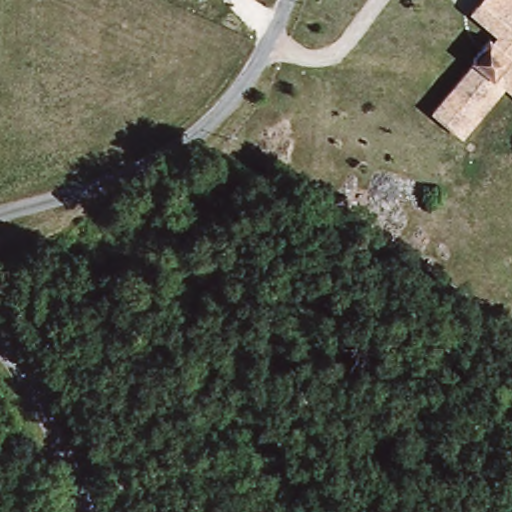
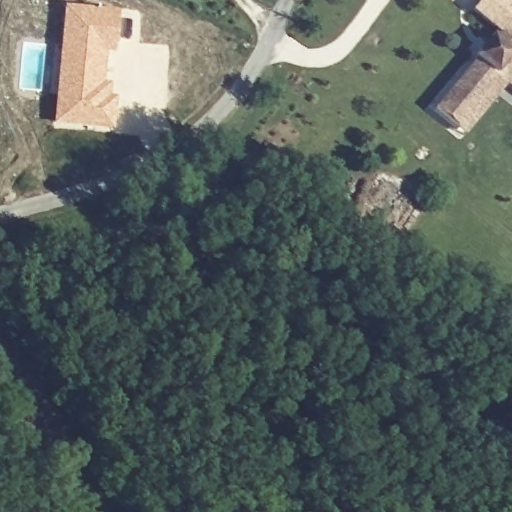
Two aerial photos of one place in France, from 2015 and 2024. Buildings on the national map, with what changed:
unchanged [(476,64),(474,61),(491,40),(495,44),(500,37),(472,15),(485,0),(512,0),(512,95),(505,89),(462,139),(456,134),(433,114),(476,64)]
new [(62,5),(117,10),(114,53),(109,53),(106,82),(111,83),(111,94),(116,95),(113,131),(52,125),(62,5)]

